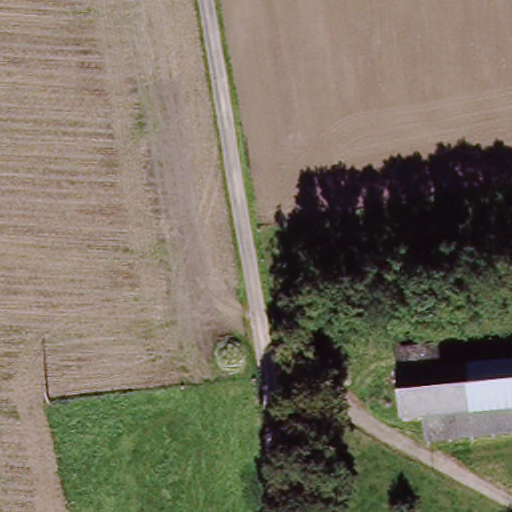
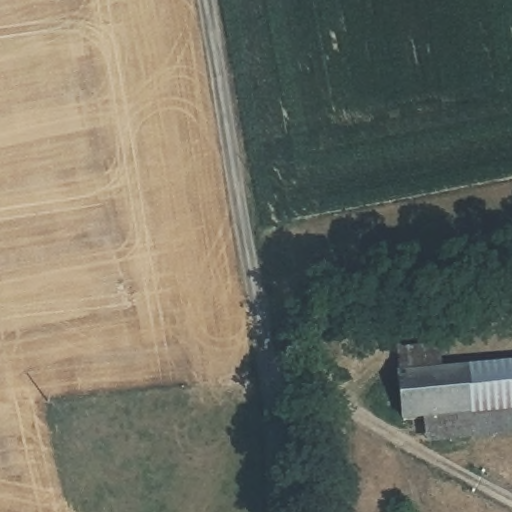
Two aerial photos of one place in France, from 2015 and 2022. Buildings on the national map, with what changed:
unchanged [(395,350),(436,346),(438,371),(397,375),(395,350)]
unchanged [(401,421),(397,375),(438,371),(512,363),(512,409),(511,410),(424,418),(401,421)]
unchanged [(512,415),(512,435),(426,445),(424,418),(511,410),(512,415)]

